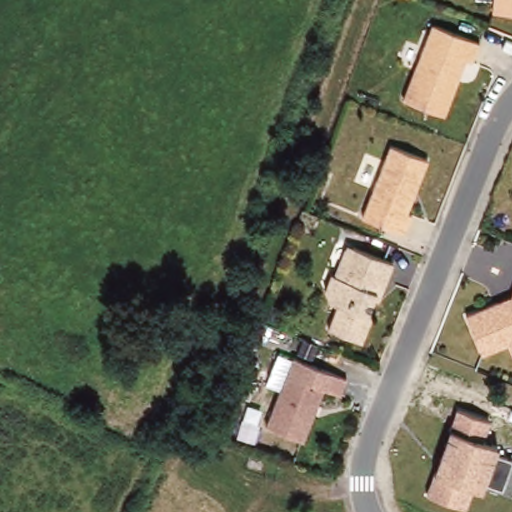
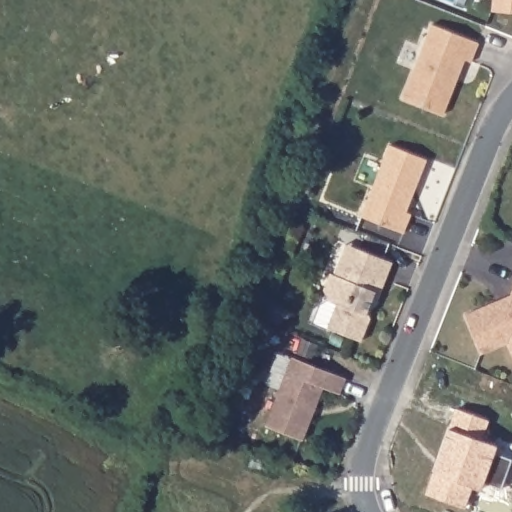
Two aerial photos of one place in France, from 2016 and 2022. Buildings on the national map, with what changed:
unchanged [(494,0),(512,0),(512,10),(493,8),(494,0)]
unchanged [(403,96),(433,21),(480,40),(472,59),(466,57),(458,77),(445,112),(403,96)]
unchanged [(411,199),(407,209),(412,211),(405,231),(362,214),(375,184),(390,142),(428,157),(416,186),(413,195),(411,199)]
unchanged [(378,297),(374,295),(368,309),(371,316),(362,338),(328,325),(338,301),(330,298),(325,287),(331,270),(335,272),(347,241),(360,246),(393,259),(385,279),(378,297)]
unchanged [(482,352),(466,313),(497,300),(511,293),(512,292),(512,348),(509,341),(482,352)]
unchanged [(304,437),(266,422),(293,354),(347,375),(341,391),(325,385),(317,403),(313,414),(304,437)]
unchanged [(488,417),(480,437),(495,443),(493,450),(511,457),(500,487),(481,480),(478,487),(470,484),(462,504),(424,490),(432,468),(435,469),(451,427),(448,426),(456,405),(488,417)]

